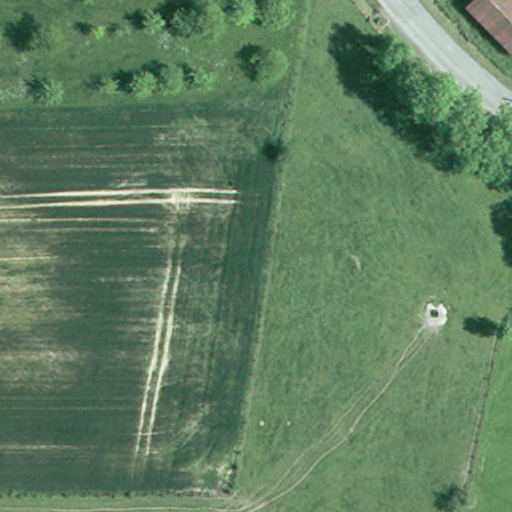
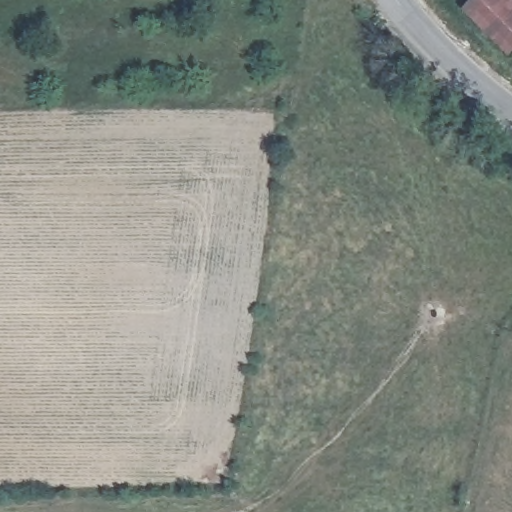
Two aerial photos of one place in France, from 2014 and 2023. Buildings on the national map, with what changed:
unchanged [(508,45),(463,1),(464,0),(512,0),(512,40),(508,45)]

